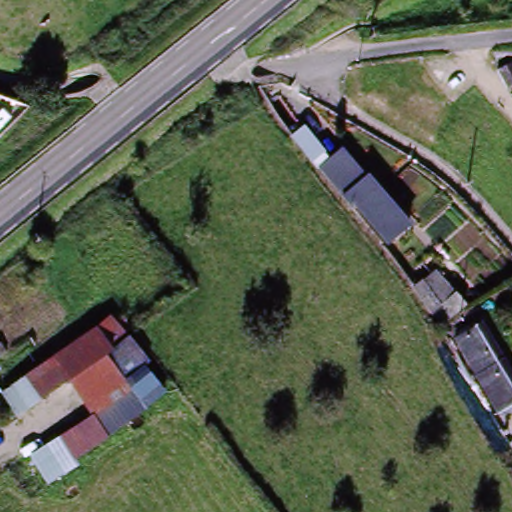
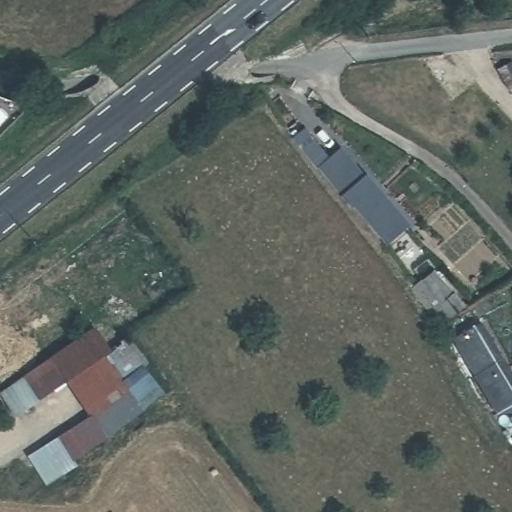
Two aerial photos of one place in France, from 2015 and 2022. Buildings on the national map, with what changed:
unchanged [(297,135),(316,120),(341,149),(320,169),(297,135)]
unchanged [(381,236),(356,209),(321,170),(339,154),(374,191),(399,220),(381,236)]
unchanged [(472,303),(447,327),(417,290),(440,270),(472,303)]
unchanged [(141,373),(128,382),(107,357),(91,367),(88,362),(73,339),(109,315),(150,368),(141,373)]
unchanged [(88,362),(55,382),(41,360),(48,355),(73,339),(88,362)]
unchanged [(512,376),(512,407),(506,412),(459,358),(482,341),(512,376)]
unchanged [(129,386),(86,413),(81,416),(62,386),(91,367),(107,357),(128,382),(129,386)]
unchanged [(55,382),(16,407),(2,385),(41,360),(55,382)]
unchanged [(86,413),(129,386),(148,373),(153,380),(166,401),(69,461),(71,465),(43,482),(24,452),(53,436),(88,416),(86,413)]

